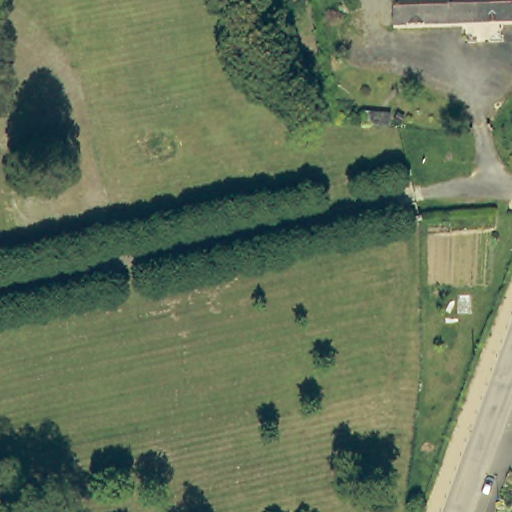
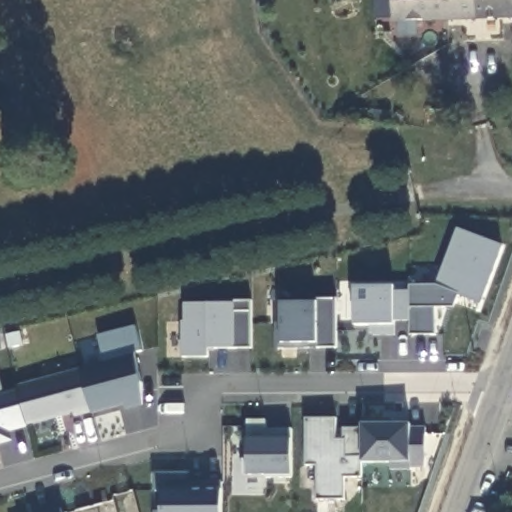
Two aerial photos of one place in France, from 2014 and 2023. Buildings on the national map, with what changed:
unchanged [(512,21),(392,23),(390,0),(512,0),(512,21)]
unchanged [(365,114),(387,117),(387,130),(363,128),(365,114)]
new [(482,304),(458,295),(454,308),(433,308),(436,333),(411,334),(411,322),(395,320),(394,325),(395,335),(371,336),(371,324),(354,324),(336,323),(336,348),(316,348),(276,348),(275,324),(281,324),(281,303),(317,303),(317,298),(337,299),(337,305),(354,305),(355,286),(394,286),(395,291),(409,292),(409,285),(435,285),(457,228),(504,246),(482,304)]
new [(250,348),(207,348),(207,357),(182,357),(182,321),(184,321),(184,303),(216,303),(216,300),(250,301),(250,348)]
new [(142,352),(134,354),(141,377),(142,406),(125,410),(124,405),(91,413),(73,418),(72,414),(27,426),(28,428),(10,432),(13,442),(0,446),(0,381),(4,394),(17,390),(16,385),(81,368),(105,361),(97,335),(135,325),(142,352)]
new [(336,418),(336,440),(344,440),(343,428),(360,428),(361,423),(411,424),(411,428),(425,427),(424,467),(410,468),(410,470),(390,470),(390,463),(361,463),(361,476),(343,477),(343,500),(318,500),(317,465),(306,465),(305,419),(336,418)]
new [(293,476),(249,475),(243,475),(243,460),(247,461),(246,438),(247,420),(265,419),(266,428),(291,428),(293,476)]
new [(188,481),(221,481),(222,489),(222,512),(154,512),(155,472),(189,473),(188,481)]
new [(112,495),(133,490),(139,512),(69,512),(114,500),(112,495)]
new [(62,512),(50,512),(61,509),(62,512)]

